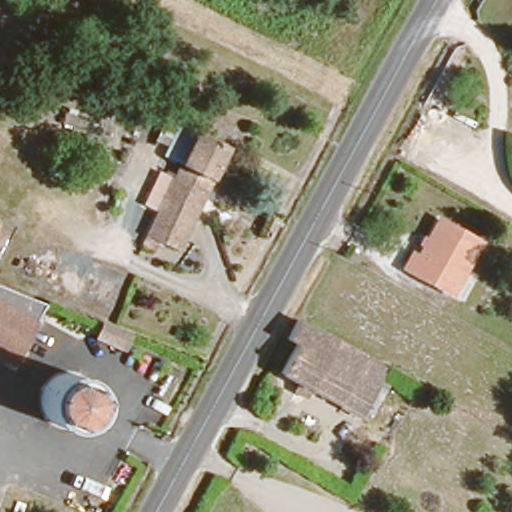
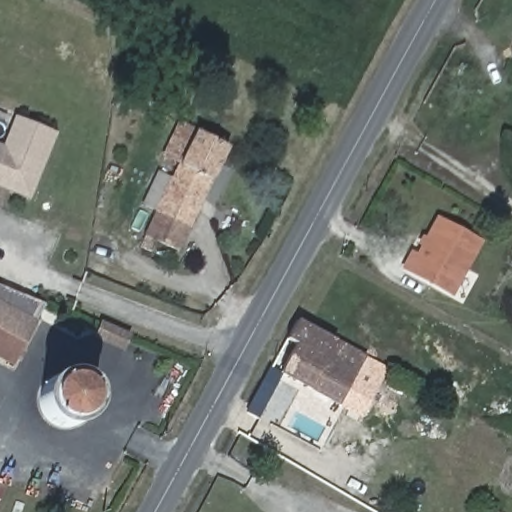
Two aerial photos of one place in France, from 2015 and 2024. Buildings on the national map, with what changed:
new [(30,200),(0,189),(0,144),(1,145),(14,114),(57,131),(30,200)]
unchanged [(151,189),(160,169),(174,176),(181,160),(196,126),(228,142),(192,217),(179,244),(161,236),(156,247),(141,240),(157,210),(145,204),(151,189)]
unchanged [(415,250),(435,214),(476,236),(446,288),(400,263),(408,247),(415,250)]
unchanged [(46,297),(10,360),(0,355),(0,280),(46,297)]
unchanged [(363,417),(280,371),(295,343),(288,339),(298,320),(390,368),(363,417)]
unchanged [(122,335),(120,345),(100,338),(104,329),(122,335)]
unchanged [(2,512),(0,512),(0,506),(4,507),(2,512)]

